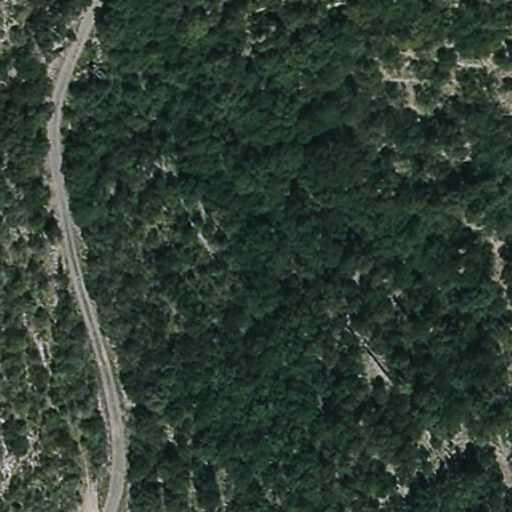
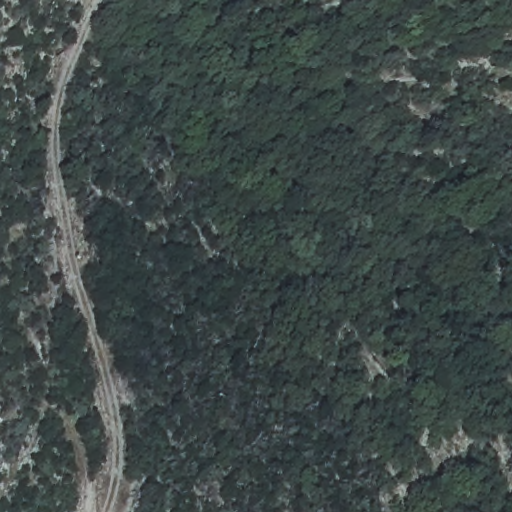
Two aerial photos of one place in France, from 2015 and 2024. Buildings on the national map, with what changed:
[]

